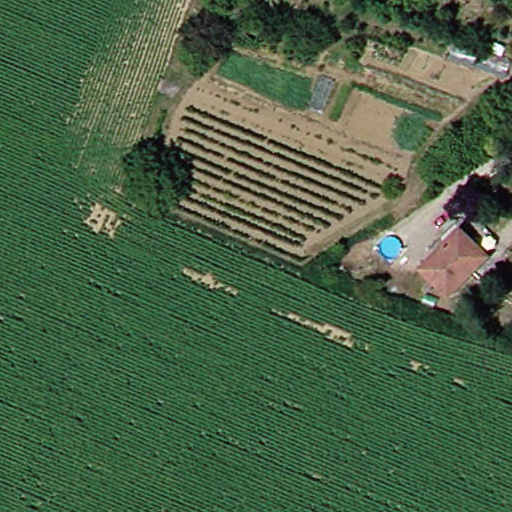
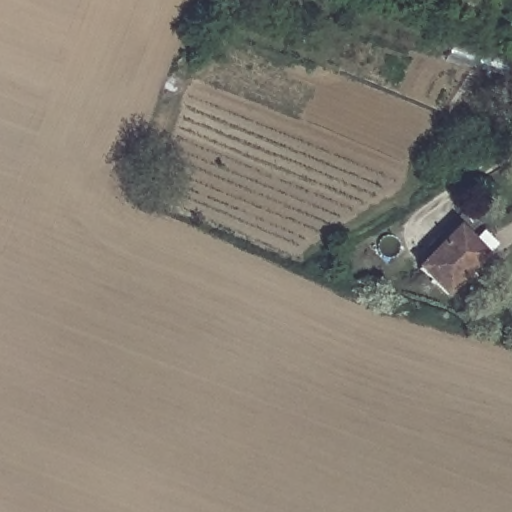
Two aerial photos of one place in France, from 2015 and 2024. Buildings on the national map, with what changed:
unchanged [(443,290),(417,266),(453,230),(480,255),(443,290)]

